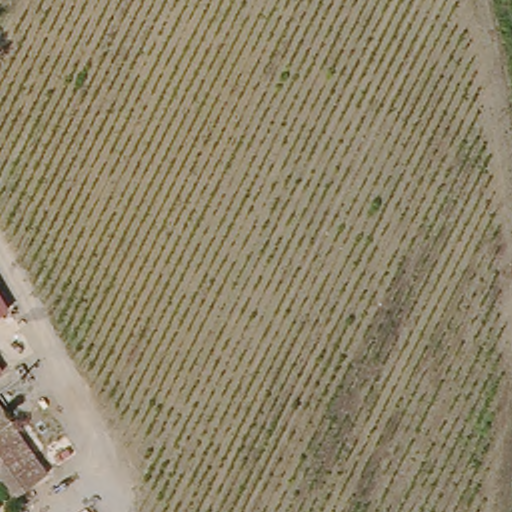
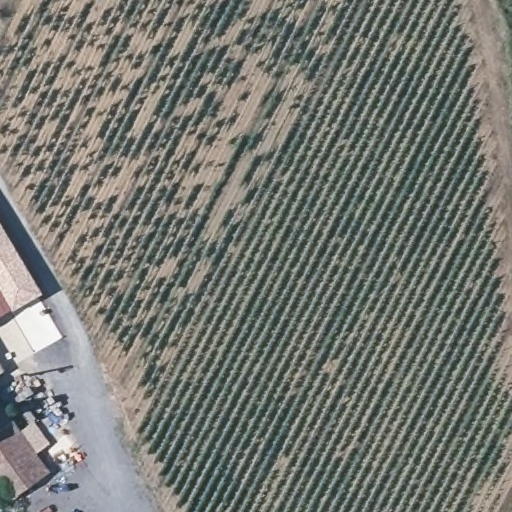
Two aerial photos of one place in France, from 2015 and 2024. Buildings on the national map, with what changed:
new [(0,284),(0,228),(38,293),(8,311),(8,310),(0,315),(0,308),(10,302),(0,284)]
unchanged [(0,308),(0,284),(10,302),(0,308)]
new [(0,374),(0,369),(3,373),(0,374)]
unchanged [(0,466),(0,397),(31,442),(0,466)]
unchanged [(20,494),(0,467),(0,466),(31,442),(50,470),(20,494)]

